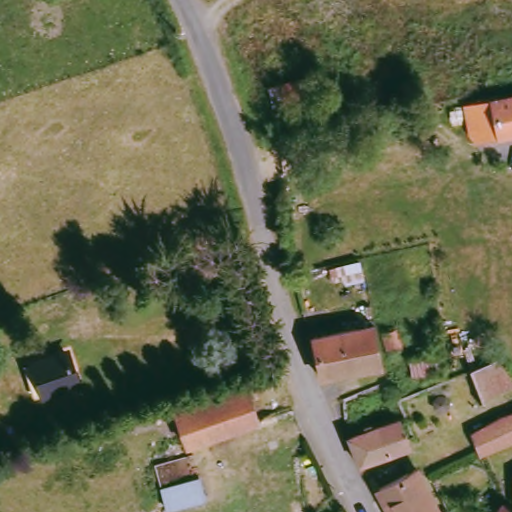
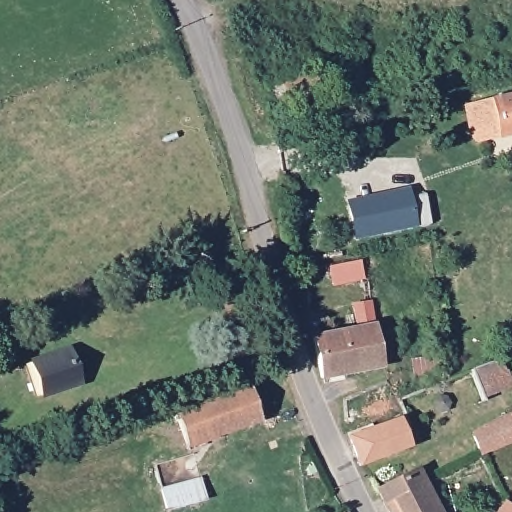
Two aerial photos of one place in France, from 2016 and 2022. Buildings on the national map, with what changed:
unchanged [(273,91),(318,78),(325,98),(278,110),(273,91)]
unchanged [(475,132),(470,104),(512,94),(512,130),(482,136),(475,132)]
new [(347,202),(405,190),(414,227),(355,239),(347,202)]
unchanged [(355,318),(358,333),(377,330),(385,372),(325,383),(315,328),(355,318)]
unchanged [(84,380),(43,396),(30,366),(72,351),(84,380)]
unchanged [(512,393),(487,402),(470,376),(502,365),(512,380),(512,393)]
unchanged [(253,385),(265,421),(190,449),(177,410),(253,385)]
unchanged [(478,434),(507,411),(512,409),(512,447),(488,457),(478,434)]
unchanged [(400,422),(410,448),(365,469),(352,443),(400,422)]
unchanged [(318,461),(303,465),(299,453),(312,448),(318,461)]
unchanged [(444,512),(394,512),(387,497),(422,470),(444,512)]
unchanged [(510,506),(512,507),(512,512),(505,512),(510,506)]

